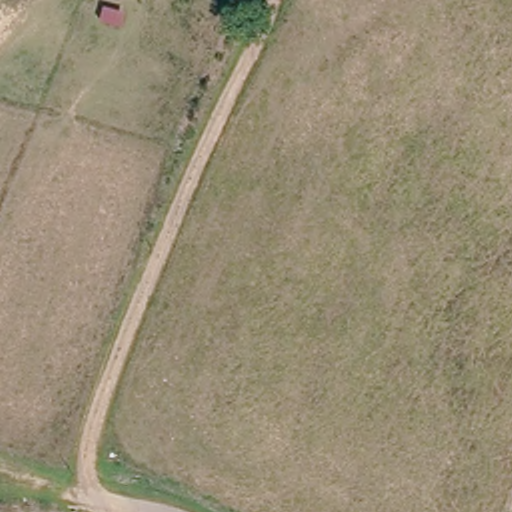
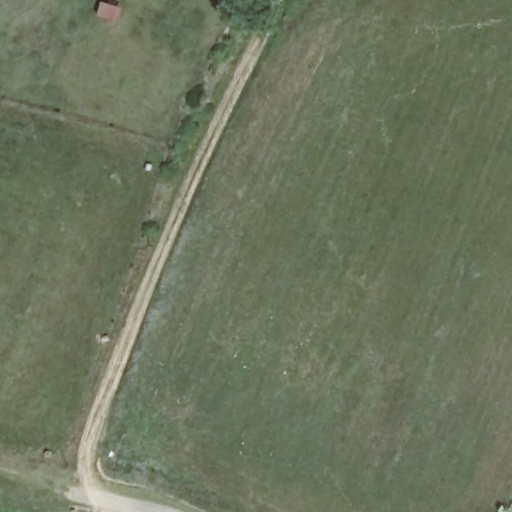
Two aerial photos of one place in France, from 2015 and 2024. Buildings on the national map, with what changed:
[]

